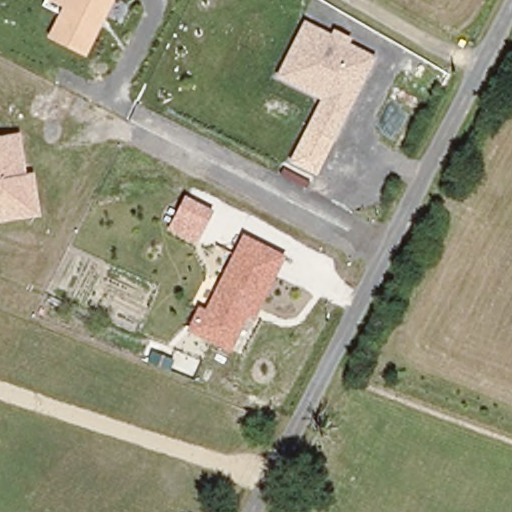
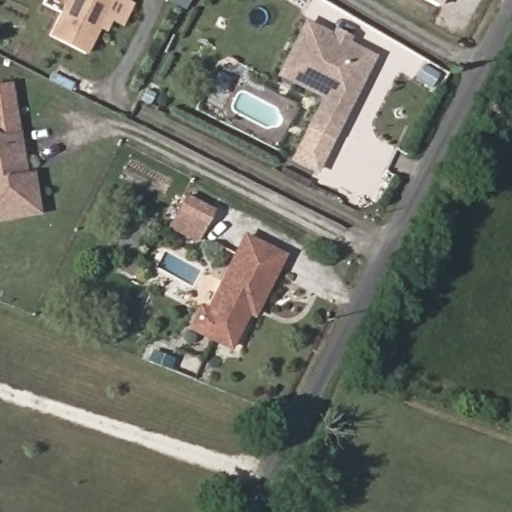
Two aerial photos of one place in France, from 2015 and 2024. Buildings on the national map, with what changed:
unchanged [(49,35),(66,0),(117,0),(89,55),(49,35)]
new [(438,9),(422,0),(443,0),(438,9)]
unchanged [(276,77),(305,20),(330,34),(332,29),(351,37),(349,44),(375,57),(335,142),(307,127),(320,100),(276,77)]
new [(19,132),(0,135),(0,84),(11,82),(19,132)]
unchanged [(317,176),(289,163),(307,127),(335,142),(317,176)]
unchanged [(0,135),(19,132),(25,172),(34,171),(41,215),(0,221),(0,135)]
unchanged [(197,245),(167,230),(184,196),(214,210),(197,245)]
unchanged [(185,331),(200,304),(205,307),(245,234),(288,256),(255,320),(247,316),(231,351),(185,331)]

